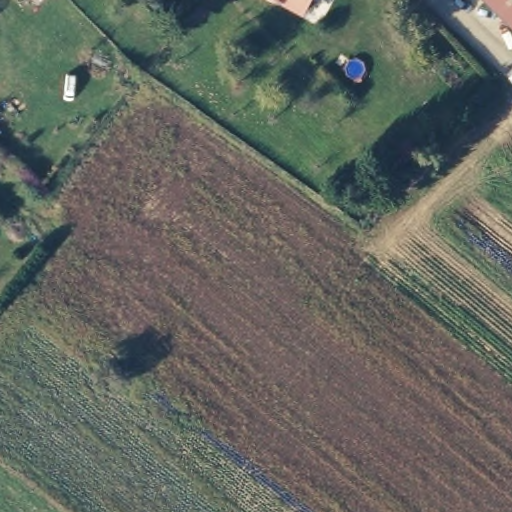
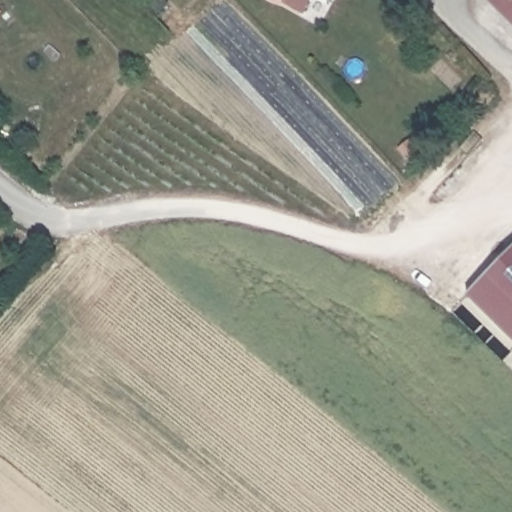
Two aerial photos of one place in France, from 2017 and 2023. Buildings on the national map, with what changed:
unchanged [(283,6),(285,3),(280,0),(312,0),(304,14),(283,6)]
unchanged [(512,0),(512,22),(490,0),(512,0)]
new [(512,249),(512,341),(466,297),(512,249)]

